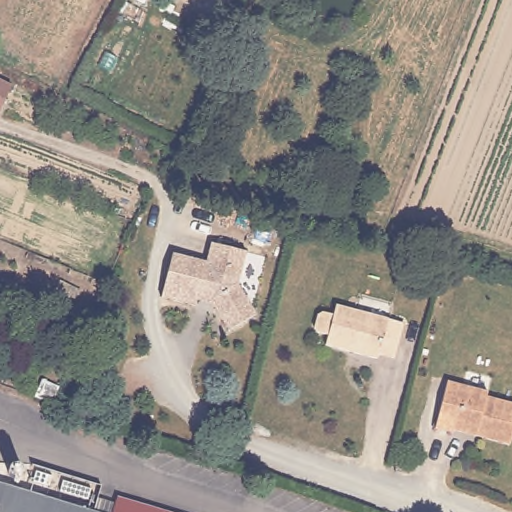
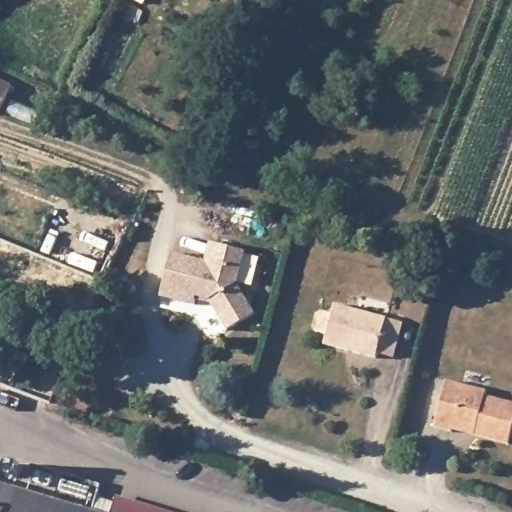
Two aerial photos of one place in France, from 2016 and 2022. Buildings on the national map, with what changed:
unchanged [(0,114),(0,70),(17,77),(0,114)]
unchanged [(237,282),(257,311),(230,330),(210,300),(197,296),(195,305),(161,295),(171,253),(205,261),(210,241),(246,250),(237,282)]
unchanged [(396,354),(380,349),(378,354),(328,338),(331,330),(320,326),(318,320),(321,309),(327,305),(337,308),(340,300),(406,320),(396,354)]
unchanged [(453,426),(437,421),(451,375),(490,387),(489,393),(512,400),(512,438),(511,441),(479,431),(454,423),(453,426)]
unchanged [(111,495),(173,512),(0,512),(0,476),(106,511),(111,495)]

